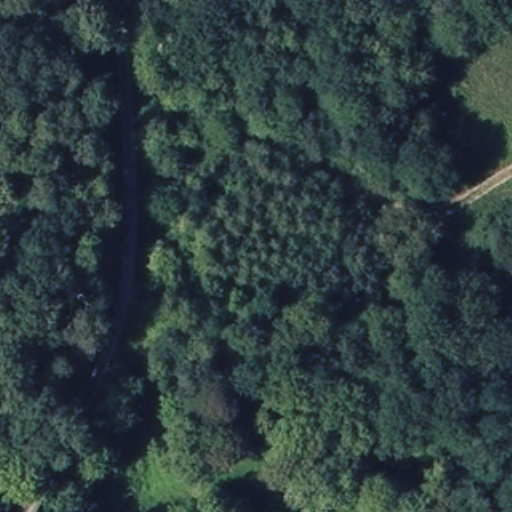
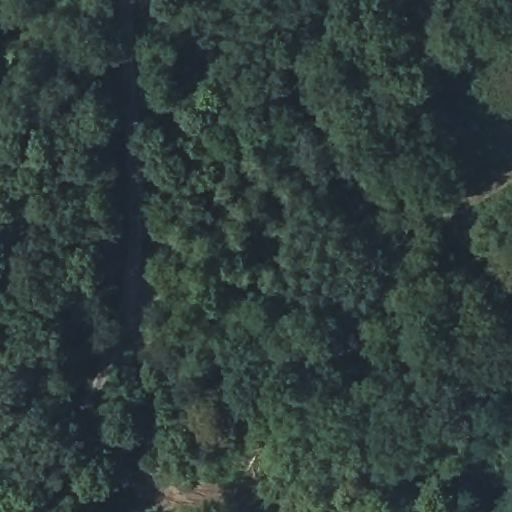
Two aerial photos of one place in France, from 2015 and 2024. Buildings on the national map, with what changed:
unchanged [(124,363),(136,365),(135,375),(122,373),(124,363)]

